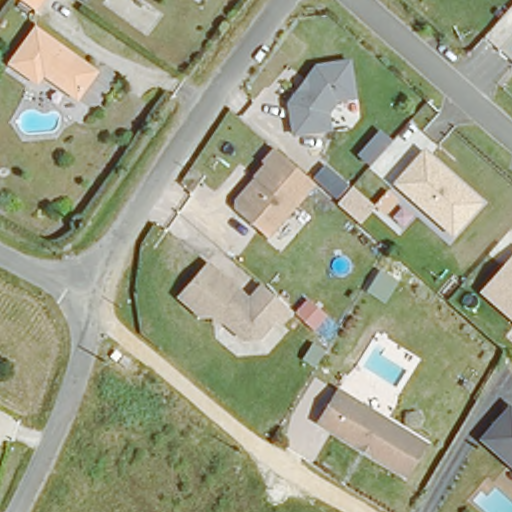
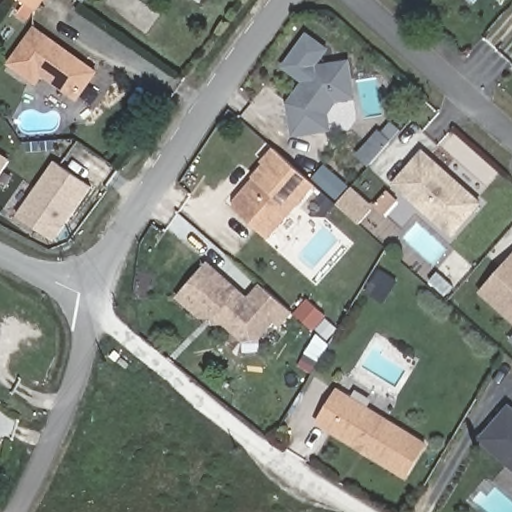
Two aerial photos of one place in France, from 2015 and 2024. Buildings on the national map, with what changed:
unchanged [(3,0),(34,0),(24,14),(3,0)]
unchanged [(72,0),(77,0),(76,2),(72,0)]
unchanged [(39,74),(13,55),(37,21),(98,62),(79,89),(51,70),(55,66),(48,61),(44,67),(39,74)]
unchanged [(359,99),(339,102),(330,115),(333,132),(293,139),(286,105),(318,64),(352,60),(359,99)]
new [(376,132),(389,142),(369,166),(356,155),(376,132)]
unchanged [(320,185),(270,242),(231,202),(265,169),(256,160),(272,141),(320,185)]
unchanged [(453,240),(393,184),(425,148),(485,206),(453,240)]
new [(8,161),(0,173),(0,156),(8,161)]
new [(53,162),(91,187),(54,241),(17,216),(53,162)]
unchanged [(364,225),(338,204),(343,197),(318,177),(327,166),(376,207),(364,225)]
unchanged [(512,258),(512,321),(482,295),(512,258)]
unchanged [(251,295),(260,283),(297,315),(283,332),(275,326),(262,342),(247,343),(221,322),(205,322),(174,295),(206,261),(251,295)]
new [(378,269),(396,282),(382,302),(363,290),(378,269)]
unchanged [(340,387),(427,442),(407,473),(319,418),(340,387)]
unchanged [(512,406),(512,468),(480,441),(512,406)]

